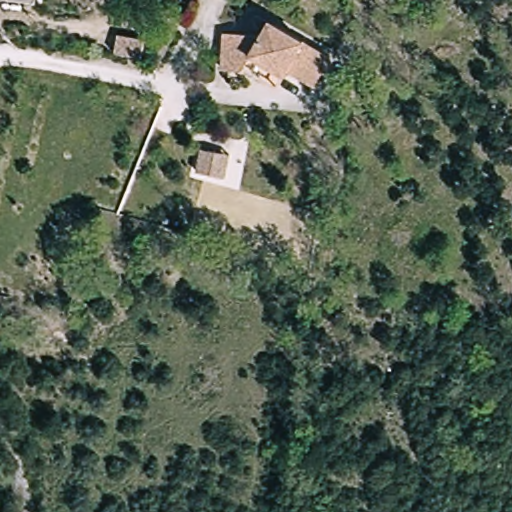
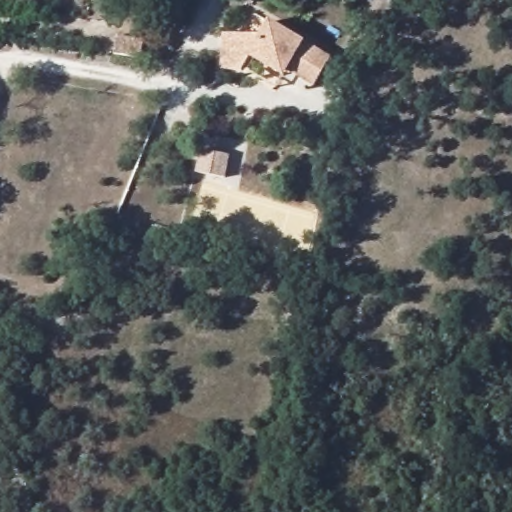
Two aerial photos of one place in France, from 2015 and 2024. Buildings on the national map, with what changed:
unchanged [(148,34),(119,30),(123,12),(151,18),(148,34)]
unchanged [(244,72),(216,68),(221,33),(264,37),(273,22),(335,56),(319,83),(292,68),(288,76),(250,58),(244,72)]
unchanged [(228,158),(221,158),(198,155),(201,130),(225,133),(231,134),(228,158)]

